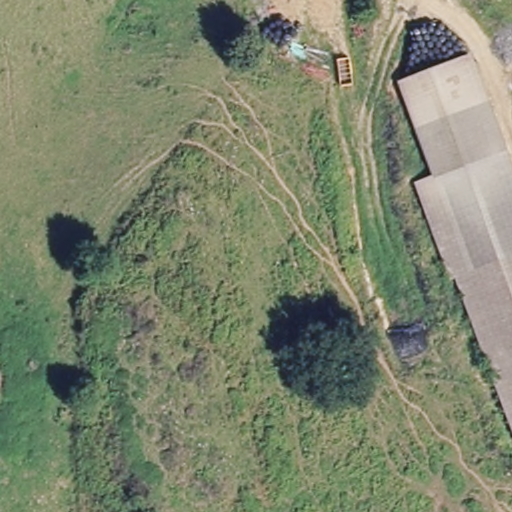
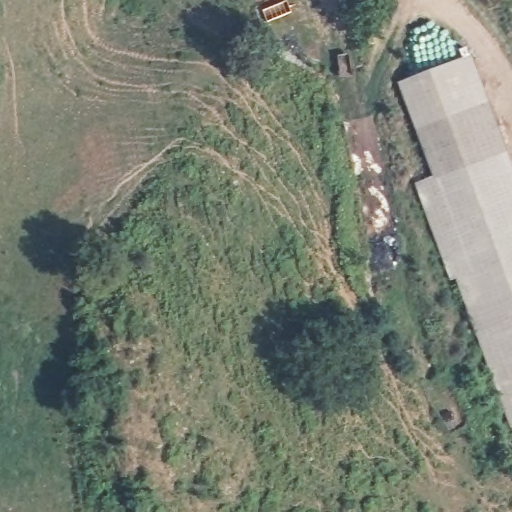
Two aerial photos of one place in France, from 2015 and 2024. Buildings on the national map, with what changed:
unchanged [(467,59),(512,180),(512,221),(454,64),(467,59)]
unchanged [(448,279),(431,232),(413,185),(431,179),(397,85),(454,64),(512,221),(512,437),(453,278),(448,279)]

